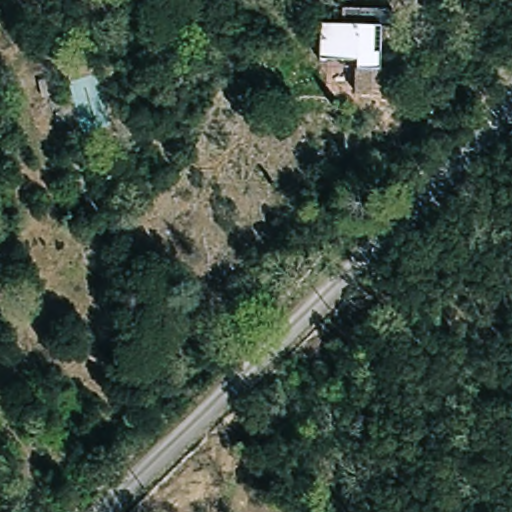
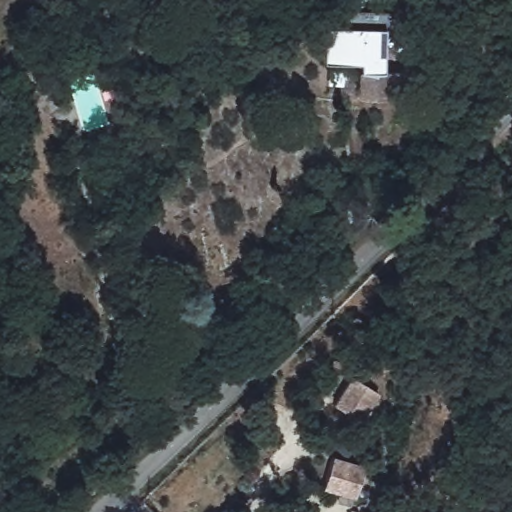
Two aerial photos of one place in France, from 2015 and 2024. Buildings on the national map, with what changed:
unchanged [(355,72),(355,63),(317,61),(319,27),(341,27),(342,9),(390,13),(390,31),(375,30),(373,72),(355,72)]
unchanged [(355,72),(373,72),(400,72),(400,102),(385,102),(384,97),(355,96),(355,72)]
new [(379,395),(360,424),(332,406),(350,376),(379,395)]
new [(364,467),(354,500),(322,490),(332,457),(364,467)]

